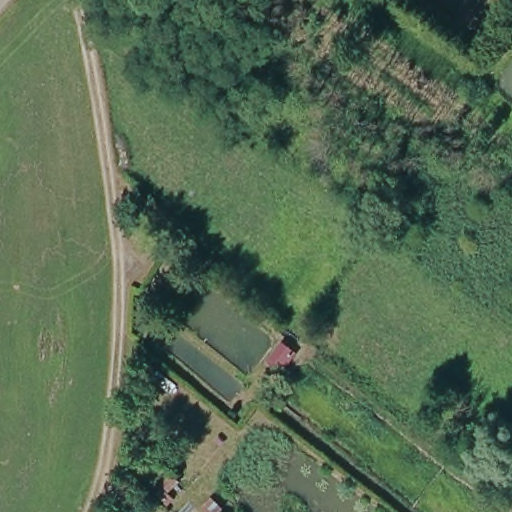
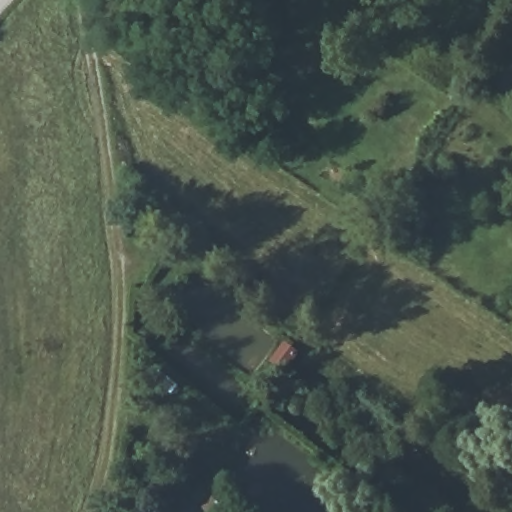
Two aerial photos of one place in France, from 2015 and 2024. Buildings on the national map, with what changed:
unchanged [(281,375),(269,362),(286,343),(301,355),(281,375)]

